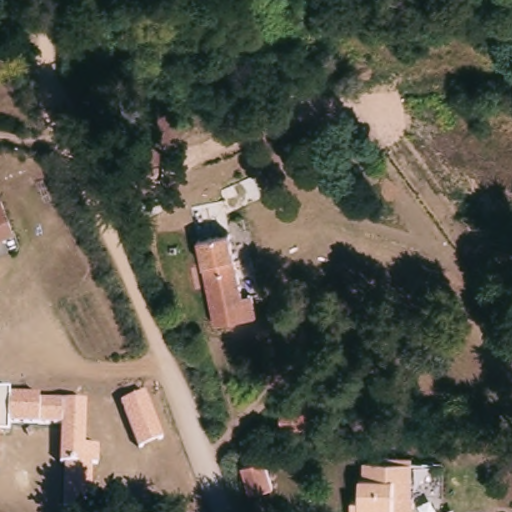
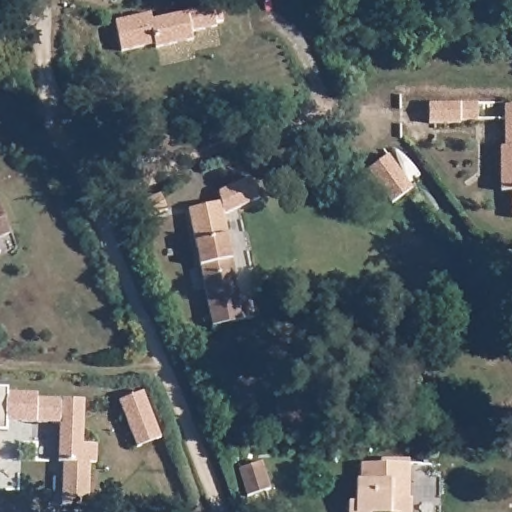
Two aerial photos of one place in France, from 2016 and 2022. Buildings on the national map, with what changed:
new [(154,10),(155,16),(222,3),(225,21),(219,22),(219,25),(195,31),(195,38),(159,46),(158,42),(125,48),(119,18),(154,10)]
new [(431,101),(480,101),(480,119),(462,119),(462,121),(431,121),(431,101)]
new [(503,189),(502,144),(506,144),(506,103),(512,103),(512,189),(503,189)]
new [(390,153),(415,187),(395,201),(370,168),(390,153)]
unchanged [(0,231),(0,200),(10,227),(0,231)]
unchanged [(210,324),(193,239),(224,232),(237,296),(246,294),(251,316),(210,324)]
unchanged [(92,461),(90,501),(64,501),(65,461),(60,461),(60,424),(9,422),(9,428),(0,429),(0,387),(10,387),(10,391),(41,392),(41,398),(86,399),(84,443),(100,444),(100,461),(92,461)]
unchanged [(139,449),(120,400),(143,391),(162,437),(139,449)]
unchanged [(271,409),(312,409),(312,433),(271,433),(271,409)]
unchanged [(411,512),(349,512),(350,499),(354,499),(355,481),(359,481),(360,461),(386,462),(386,457),(395,458),(410,458),(410,463),(409,498),(411,498),(411,512)]
unchanged [(262,462),(270,489),(249,496),(240,469),(262,462)]

